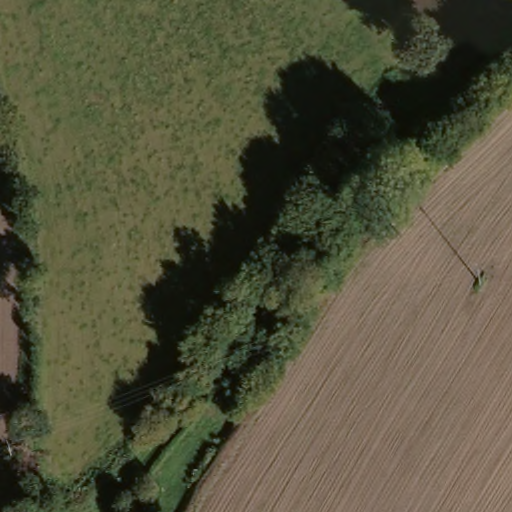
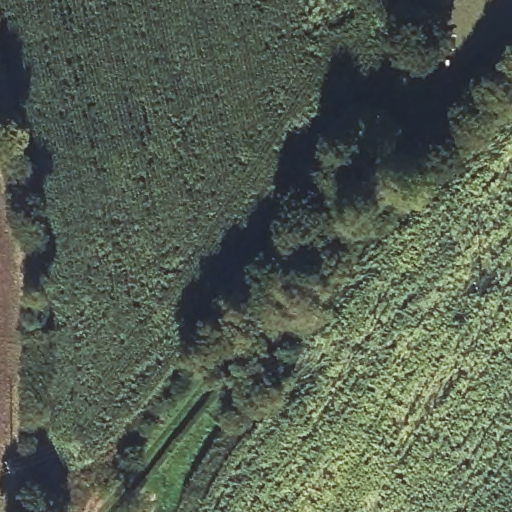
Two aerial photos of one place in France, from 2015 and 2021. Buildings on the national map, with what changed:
unchanged [(345,167),(334,180),(323,171),(332,157),(345,167)]

